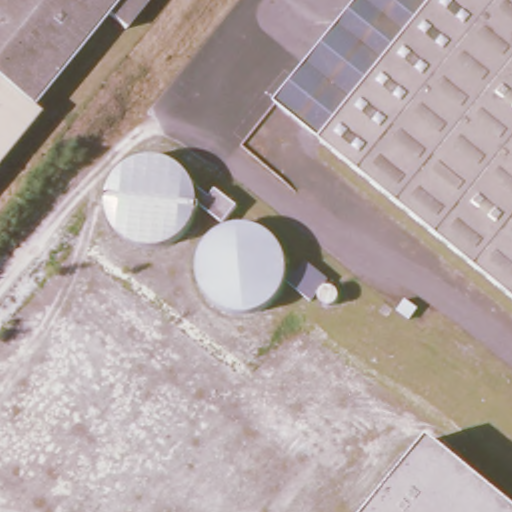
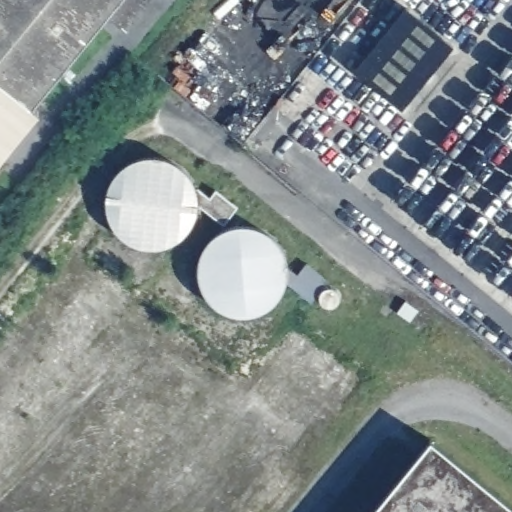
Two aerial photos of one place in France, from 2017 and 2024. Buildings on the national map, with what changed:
unchanged [(106,7),(32,100),(40,105),(0,156),(0,0),(143,0),(125,21),(106,7)]
demolished [(360,19),(359,0),(512,0),(512,295),(320,139),(385,60),(337,22),(360,19)]
new [(454,46),(402,109),(353,70),(405,6),(454,46)]
unchanged [(330,300),(325,298),(322,293),(322,291),(322,288),(325,284),(329,283),(330,283),(335,285),(338,290),(338,295),(335,298),(330,300)]
unchanged [(512,512),(373,512),(432,439),(512,505),(512,512)]

